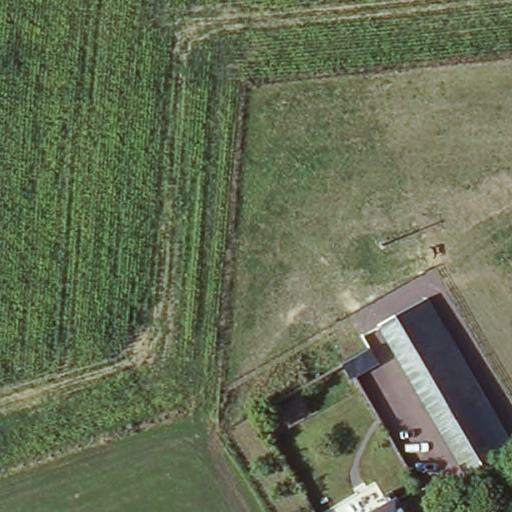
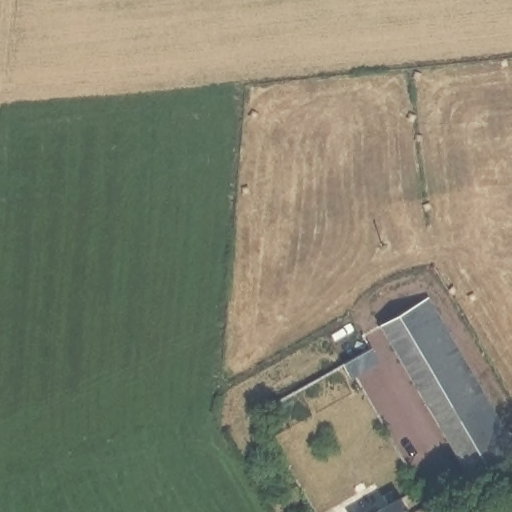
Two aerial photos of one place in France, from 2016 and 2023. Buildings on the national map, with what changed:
unchanged [(504,468),(512,482),(484,500),(390,342),(382,327),(427,302),(470,375),(500,427),(506,435),(512,446),(512,463),(504,468)]
unchanged [(382,363),(358,375),(353,379),(343,363),(337,367),(333,360),(342,356),(347,361),(374,347),(382,363)]
unchanged [(386,512),(403,502),(409,512),(386,512)]

